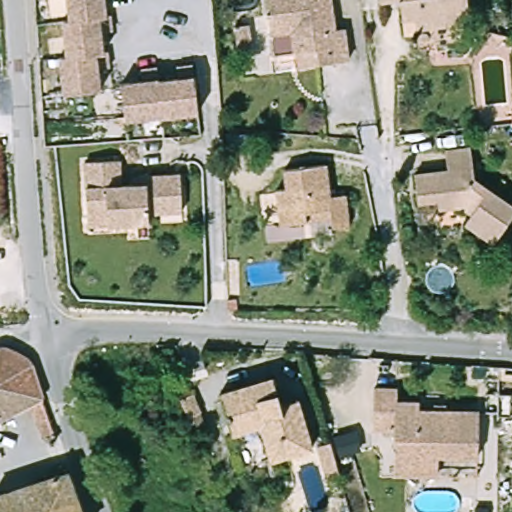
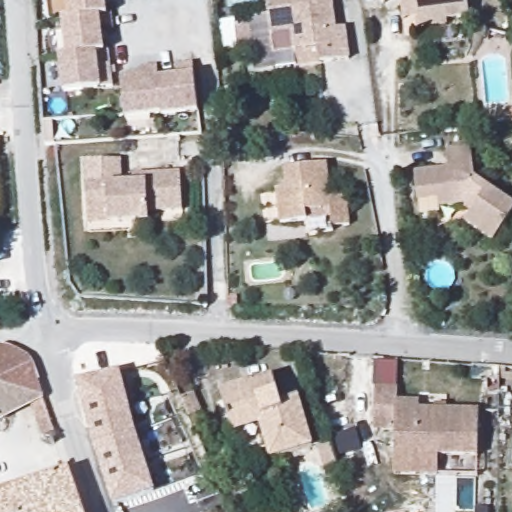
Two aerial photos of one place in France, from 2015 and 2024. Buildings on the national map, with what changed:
unchanged [(68,25),(67,0),(104,0),(106,19),(68,25)]
unchanged [(349,58),(295,64),(294,49),(274,50),(268,0),(333,0),(336,27),(346,26),(349,58)]
unchanged [(470,0),(472,16),(448,17),(448,11),(414,14),(401,15),(399,0),(470,0)]
unchanged [(60,26),(68,25),(106,19),(110,35),(98,35),(100,59),(63,63),(60,26)]
unchanged [(233,24),(248,24),(248,49),(234,49),(233,24)]
unchanged [(109,57),(111,73),(100,73),(101,94),(64,98),(60,63),(63,63),(100,59),(109,57)]
unchanged [(124,123),(123,84),(143,84),(142,70),(158,69),(158,84),(160,120),(124,123)]
unchanged [(158,84),(178,82),(176,70),(191,69),(196,120),(160,120),(158,84)]
unchanged [(512,206),(512,218),(496,244),(469,225),(472,218),(466,214),(466,208),(440,210),(440,203),(422,204),(419,176),(447,173),(446,152),(473,150),(475,169),(477,182),(512,206)]
unchanged [(178,214),(143,215),(144,224),(104,223),(103,208),(83,209),(83,159),(118,159),(118,177),(143,175),(178,176),(178,214)]
unchanged [(333,230),(331,214),(306,217),(308,227),(281,229),(276,189),(285,189),(282,170),(326,164),(331,197),(345,195),(350,229),(333,230)]
unchanged [(16,349),(26,357),(33,365),(43,396),(0,419),(0,350),(3,349),(16,349)]
new [(114,507),(95,448),(78,384),(120,372),(138,434),(157,494),(114,507)]
unchanged [(223,418),(217,393),(272,378),(278,402),(296,397),(308,448),(267,459),(258,424),(227,432),(223,418)]
unchanged [(393,434),(372,434),(371,392),(393,392),(394,405),(416,404),(417,412),(477,411),(479,454),(394,459),(393,434)]
unchanged [(438,478),(394,478),(394,459),(438,457),(438,478)]
unchanged [(0,497),(68,474),(81,512),(0,512),(0,497)]

